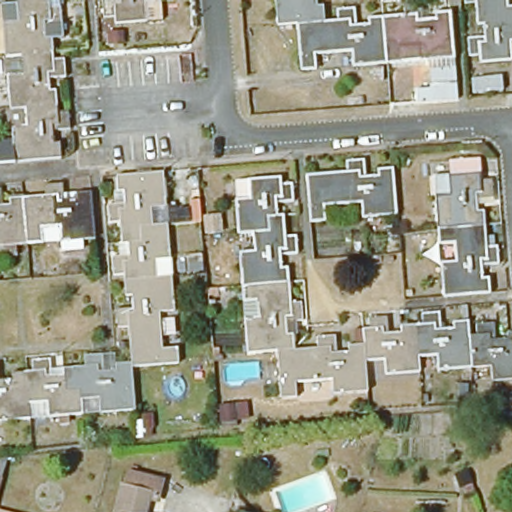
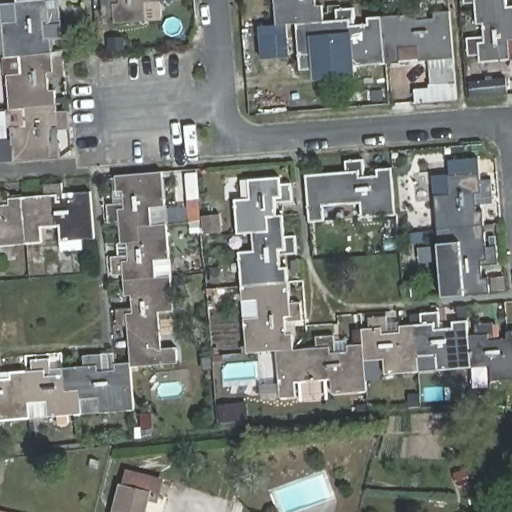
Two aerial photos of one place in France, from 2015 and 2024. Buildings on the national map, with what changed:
unchanged [(16,2),(16,0),(48,0),(48,6),(60,5),(61,25),(44,25),(45,37),(51,37),(52,52),(5,56),(1,3),(16,2)]
unchanged [(114,24),(114,16),(103,17),(102,0),(167,0),(160,0),(145,2),(146,20),(114,24)]
unchanged [(322,10),(323,16),(324,25),(312,26),(296,28),(276,30),(274,0),(316,0),(316,10),(322,10)]
unchanged [(475,14),(475,7),(464,8),(463,0),(507,0),(508,11),(512,11),(512,45),(510,45),(512,65),(480,66),(479,60),(468,60),(467,42),(483,41),(483,29),(477,29),(475,14)]
unchanged [(387,66),(383,20),(403,19),(402,8),(421,7),(423,24),(434,22),(434,16),(450,15),(453,46),(454,62),(428,65),(420,65),(387,67),(387,66)]
unchanged [(312,26),(324,25),(336,25),(336,14),(354,12),(356,29),(367,28),(367,22),(383,20),(387,66),(387,67),(352,70),(351,55),(315,59),(315,73),(299,75),(296,28),(312,26)]
unchanged [(52,52),(53,60),(63,59),(65,76),(48,77),(49,91),(55,90),(56,105),(24,107),(9,109),(5,56),(52,52)]
unchanged [(415,107),(415,94),(430,92),(428,65),(454,62),(458,105),(415,107)]
unchanged [(11,126),(25,125),(24,107),(56,105),(57,112),(69,111),(70,129),(52,130),(54,142),(59,142),(61,159),(14,162),(11,126)]
unchanged [(474,231),(437,234),(433,180),(449,179),(448,165),(478,163),(479,176),(480,184),(490,183),(493,201),(476,203),(477,215),(483,215),(484,230),(474,231)]
unchanged [(324,210),(325,225),(310,226),(307,179),(308,179),(346,176),(345,165),(363,164),(365,180),(377,180),(377,174),(393,172),(397,219),(362,222),(360,207),(324,210)]
unchanged [(165,211),(150,212),(152,229),(145,230),(140,230),(142,248),(138,248),(127,249),(121,249),(119,226),(108,227),(107,209),(124,209),(123,195),(117,195),(115,181),(145,179),(162,177),(165,211)]
unchanged [(292,187),(293,205),(276,206),(277,220),(263,221),(264,226),(264,236),(252,237),(237,239),(234,204),(249,202),(248,184),(280,181),(281,189),(292,187)]
unchanged [(75,197),(90,196),(94,243),(60,245),(59,231),(41,232),(42,247),(28,249),(25,216),(25,215),(24,202),(44,200),(43,189),(62,187),(63,204),(75,203),(75,197)]
unchanged [(0,210),(9,209),(9,203),(24,202),(25,215),(25,216),(28,249),(0,250),(0,210)]
unchanged [(277,220),(283,220),(284,240),(296,240),(297,258),(280,259),(280,272),(287,272),(288,285),(288,287),(287,288),(281,288),(278,288),(247,290),(245,290),(241,291),(239,255),(254,255),(252,237),(264,236),(264,226),(263,221),(277,220)]
unchanged [(155,264),(156,283),(134,285),(123,285),(123,278),(112,279),(111,261),(128,260),(127,249),(138,248),(142,248),(140,230),(145,230),(152,229),(166,229),(169,262),(155,264)]
unchanged [(474,231),(484,230),(486,250),(496,250),(498,268),(481,270),(482,281),(488,281),(490,297),(483,298),(455,300),(443,301),(440,266),(454,265),(454,248),(438,249),(437,234),(474,231)]
unchanged [(162,353),(176,352),(177,367),(131,371),(131,367),(131,360),(130,353),(129,330),(117,331),(116,314),(132,312),(131,300),(125,300),(123,285),(134,285),(156,283),(171,282),(174,315),(158,316),(162,353)]
unchanged [(207,295),(207,288),(217,287),(217,294),(207,295)]
unchanged [(277,355),(274,355),(258,356),(247,357),(244,323),(258,322),(256,305),(243,305),(241,291),(245,290),(247,290),(278,288),(281,288),(287,288),(288,287),(290,307),(301,307),(302,325),(285,326),(286,338),(293,338),(294,353),(277,355)]
unchanged [(437,375),(436,360),(417,361),(417,348),(401,350),(400,337),(400,330),(421,328),(420,317),(438,315),(440,333),(452,331),(452,325),(467,325),(468,340),(469,348),(470,360),(471,372),(437,375)]
unchanged [(417,361),(418,376),(384,378),(383,364),(364,365),(363,352),(363,348),(362,333),(369,332),(368,321),(386,320),(387,338),(400,337),(401,350),(417,348),(417,361)]
unchanged [(508,356),(512,356),(512,384),(491,385),(490,370),(471,372),(470,360),(469,348),(468,340),(475,339),(475,328),(493,327),(495,343),(507,343),(508,356)]
unchanged [(508,356),(507,343),(506,336),(512,336),(512,356),(508,356)]
unchanged [(366,396),(333,398),(331,383),(295,386),(295,401),(280,402),(277,355),(294,353),(316,352),(316,341),(334,340),(336,357),(348,355),(348,350),(363,348),(363,352),(364,365),(365,387),(366,396)]
unchanged [(99,417),(98,402),(81,403),(80,391),(63,392),(62,379),(62,372),(85,371),(83,360),(101,359),(103,375),(115,375),(115,368),(131,367),(131,371),(132,387),(134,414),(99,417)]
unchanged [(80,391),(81,403),(82,418),(47,421),(46,406),(29,408),(25,375),(32,375),(31,365),(49,364),(50,380),(62,379),(63,392),(80,391)]
unchanged [(10,377),(25,375),(29,408),(30,422),(0,425),(0,384),(11,383),(10,377)]
unchanged [(152,417),(153,433),(141,434),(140,418),(152,417)]
unchanged [(0,482),(0,463),(5,462),(0,482)]
unchanged [(121,485),(124,486),(128,471),(162,480),(156,500),(148,497),(144,512),(115,512),(121,485)]

